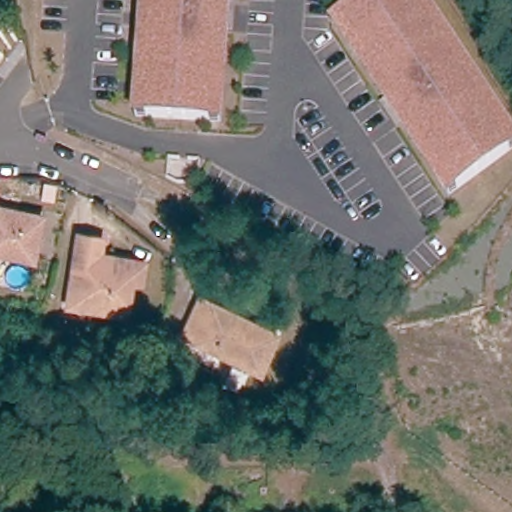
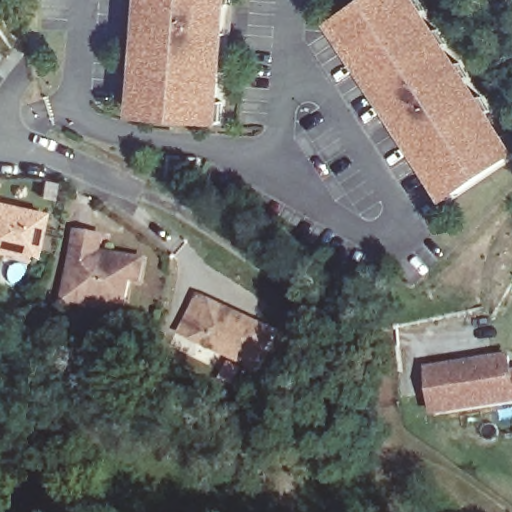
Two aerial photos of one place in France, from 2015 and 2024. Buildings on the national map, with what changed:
unchanged [(146,112),(136,111),(138,91),(144,92),(146,61),(140,61),(142,45),(148,46),(150,22),(144,22),(146,0),(233,0),(233,1),(234,1),(233,19),(230,19),(229,29),(224,29),(221,52),(227,53),(225,69),(219,67),(217,98),(223,99),(220,119),(210,118),(146,112)]
unchanged [(414,136),(404,122),(400,125),(394,116),(393,117),(383,101),(384,100),(374,84),(379,81),(362,55),(357,58),(348,43),(354,40),(338,16),(362,0),(421,0),(426,7),(421,10),(434,30),(439,27),(447,40),(442,43),(455,64),(460,61),(469,74),(464,77),(477,97),(482,95),(490,108),(486,111),(502,137),(507,134),(512,142),(512,154),(509,157),(455,191),(446,197),(435,180),(439,177),(423,151),(419,154),(409,139),(414,136)]
unchanged [(0,250),(0,206),(41,216),(31,257),(0,250)]
unchanged [(69,295),(80,229),(107,235),(104,257),(112,258),(113,252),(152,259),(148,282),(133,280),(128,315),(88,307),(68,304),(69,295)]
unchanged [(190,327),(203,300),(280,333),(264,372),(199,344),(185,338),(190,327)]
new [(436,423),(426,375),(509,358),(512,372),(512,408),(436,423)]

